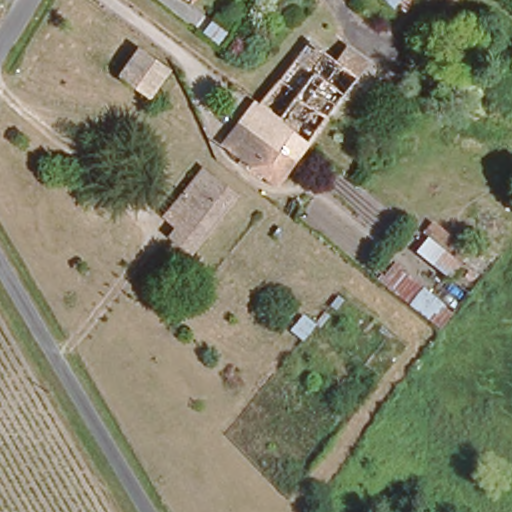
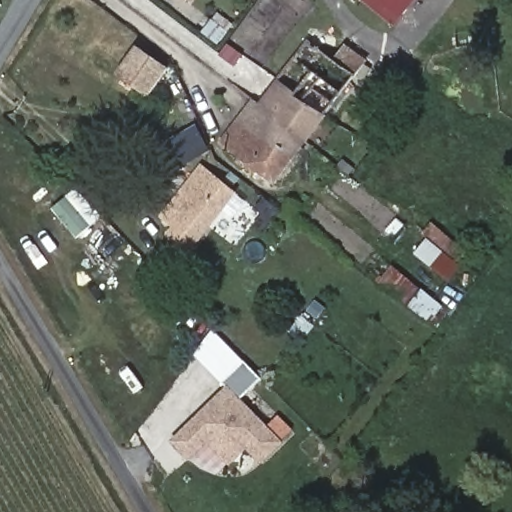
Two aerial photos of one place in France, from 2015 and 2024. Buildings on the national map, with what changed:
unchanged [(404,12),(382,0),(413,0),(404,12)]
unchanged [(156,105),(109,68),(127,41),(176,77),(156,105)]
unchanged [(292,95),(277,83),(307,41),(351,74),(323,114),(292,95)]
unchanged [(305,140),(260,107),(277,83),(292,95),(323,114),(305,140)]
unchanged [(277,180),(229,150),(260,107),(305,140),(277,180)]
unchanged [(230,181),(185,240),(166,225),(209,168),(230,181)]
unchanged [(512,200),(512,205),(507,211),(497,203),(505,194),(512,200)]
unchanged [(392,266),(430,298),(445,279),(413,256),(427,237),(465,263),(455,281),(471,292),(441,332),(377,285),(392,266)]
new [(230,465),(209,443),(189,461),(171,441),(227,385),(284,442),(260,463),(247,449),(230,465)]

